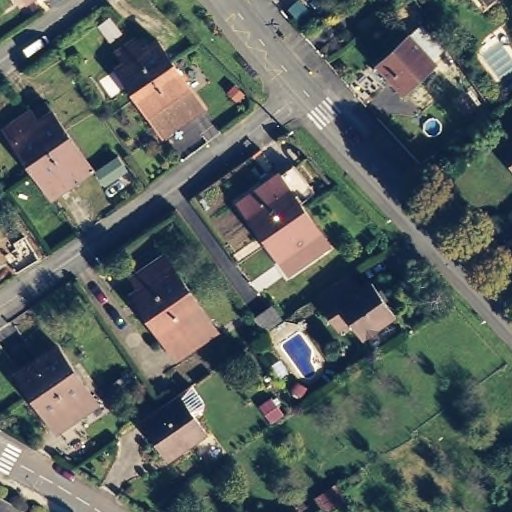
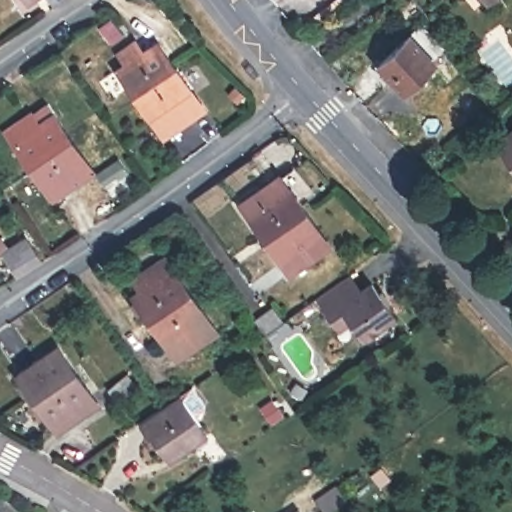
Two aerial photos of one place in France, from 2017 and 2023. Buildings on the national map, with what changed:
unchanged [(417,24),(440,47),(427,60),(430,63),(402,89),(376,61),(417,24)]
unchanged [(114,67),(122,61),(115,51),(117,49),(135,36),(144,47),(156,39),(170,58),(150,72),(156,81),(135,96),(114,67)]
unchanged [(156,81),(150,72),(170,58),(205,106),(162,135),(135,96),(156,81)]
unchanged [(10,135),(20,128),(10,114),(29,101),(31,104),(45,94),(67,125),(45,139),(52,149),(30,164),(10,135)]
unchanged [(52,149),(45,139),(67,125),(85,151),(88,150),(99,165),(87,174),(84,171),(65,183),(63,180),(50,188),(45,181),(43,182),(30,164),(52,149)]
unchanged [(497,145),(512,135),(512,166),(497,145)]
unchanged [(239,198),(294,161),(314,189),(300,198),(280,213),(285,221),(265,235),(239,198)]
unchanged [(285,221),(280,213),(300,198),(320,226),(312,232),(319,243),(298,257),(290,247),(279,255),(265,235),(285,221)]
unchanged [(25,235),(35,250),(15,263),(5,249),(25,235)]
unchanged [(155,256),(162,266),(176,257),(221,321),(182,348),(137,283),(144,279),(137,268),(155,256)]
unchanged [(340,319),(322,294),(357,269),(369,286),(380,279),(402,311),(369,334),(357,317),(345,325),(340,319)]
unchanged [(251,315),(262,307),(269,303),(280,317),(272,322),(262,330),(251,315)]
unchanged [(10,368),(52,340),(65,359),(44,372),(50,385),(30,397),(10,368)]
unchanged [(50,385),(44,372),(65,359),(73,371),(81,366),(100,393),(64,418),(62,417),(50,425),(30,397),(50,385)]
unchanged [(167,400),(185,387),(210,425),(172,452),(155,427),(152,428),(144,416),(167,400)]
unchanged [(360,465),(369,480),(322,512),(317,512),(309,500),(360,465)]

